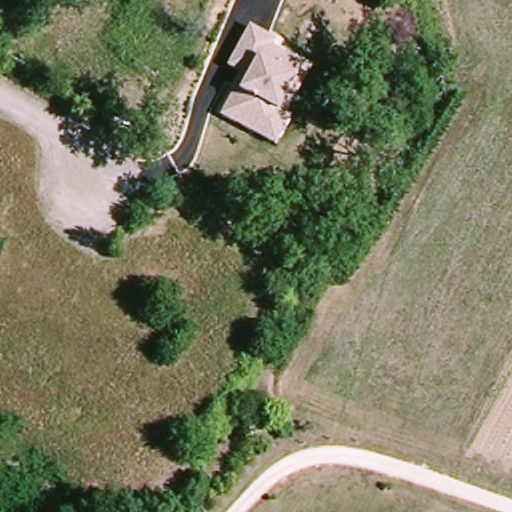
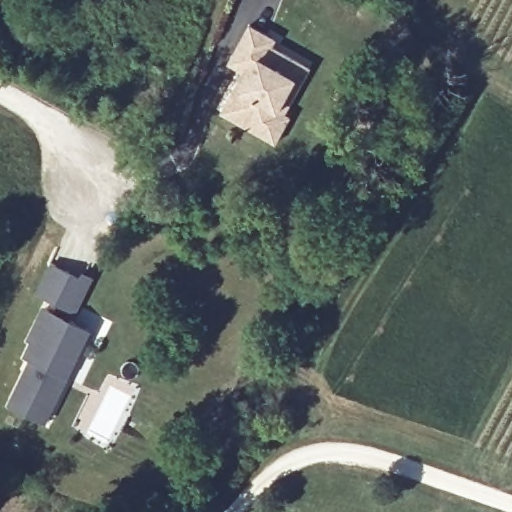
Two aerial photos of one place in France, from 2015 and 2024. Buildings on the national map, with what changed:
unchanged [(277,36),(272,45),(312,65),(286,111),(292,115),(276,143),(218,113),(240,71),(226,62),(247,21),(277,36)]
new [(50,269),(79,283),(64,312),(35,298),(50,269)]
new [(27,362),(21,360),(28,345),(24,343),(40,312),(67,326),(68,323),(71,325),(79,310),(99,321),(87,344),(81,341),(70,363),(67,361),(54,386),(57,387),(38,425),(4,407),(27,362)]

